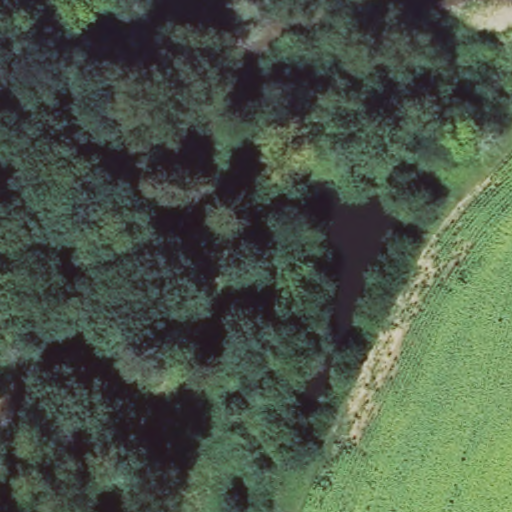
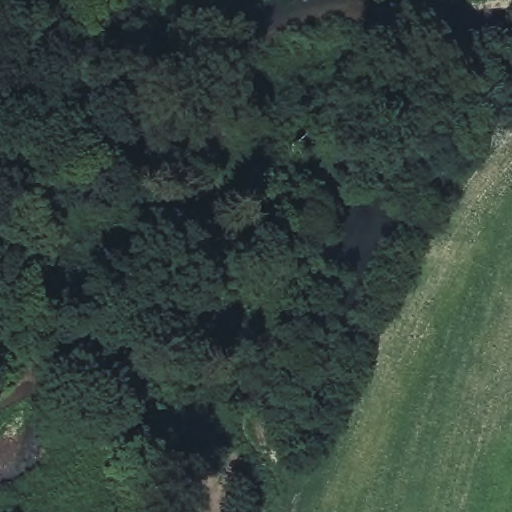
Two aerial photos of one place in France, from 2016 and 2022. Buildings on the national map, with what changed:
unchanged [(233,296),(239,304),(220,322),(204,304),(224,287),(233,296)]

